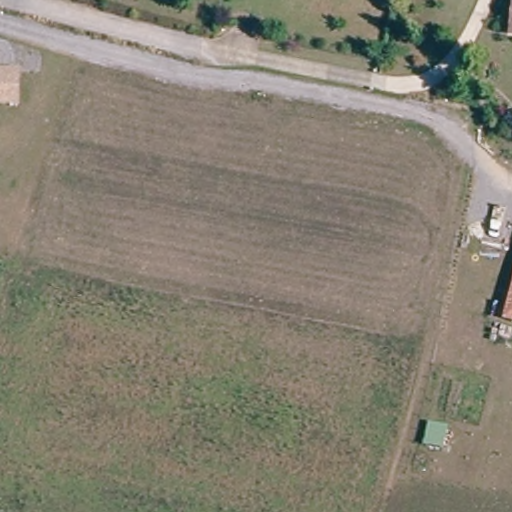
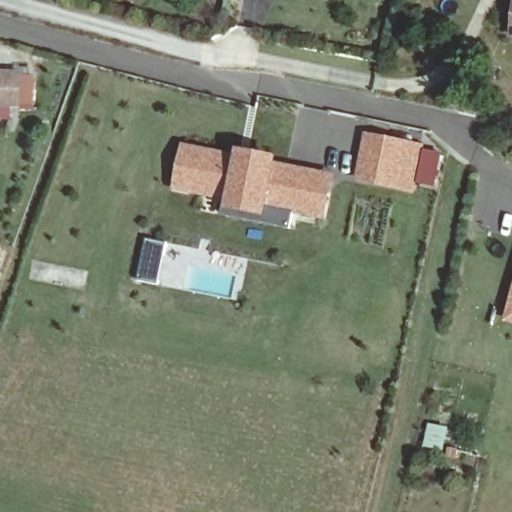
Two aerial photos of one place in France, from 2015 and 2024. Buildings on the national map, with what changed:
unchanged [(127,0),(146,0),(136,10),(127,0)]
unchanged [(512,1),(512,0),(512,38),(506,37),(512,1)]
unchanged [(21,75),(20,105),(0,104),(0,73),(21,75)]
new [(425,145),(416,194),(355,182),(365,133),(425,145)]
new [(236,155),(237,150),(279,159),(277,164),(336,174),(327,222),(292,215),(289,229),(221,215),(222,212),(205,207),(207,197),(175,190),(183,144),(236,155)]
unchanged [(512,291),(512,325),(504,322),(512,291)]

